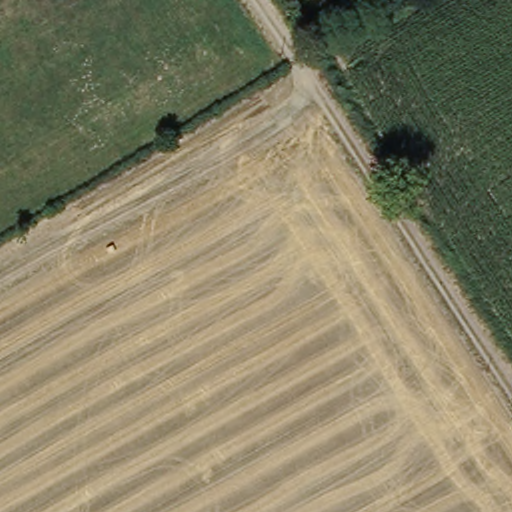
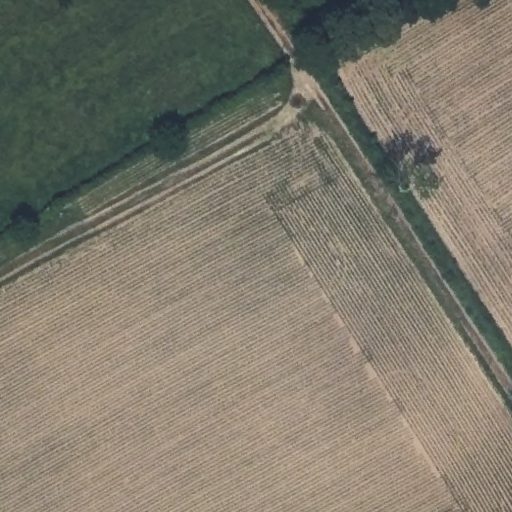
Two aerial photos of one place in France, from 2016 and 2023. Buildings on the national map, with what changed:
[]

